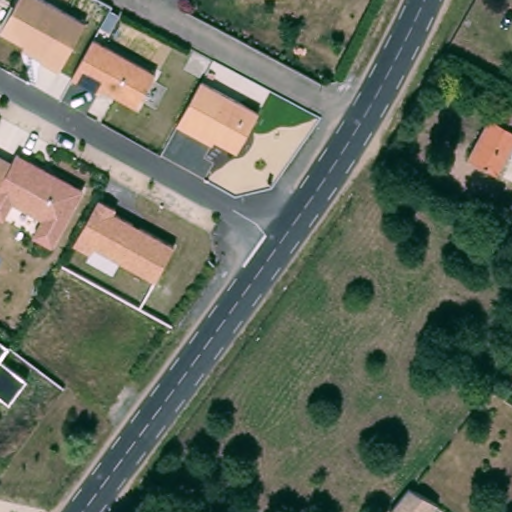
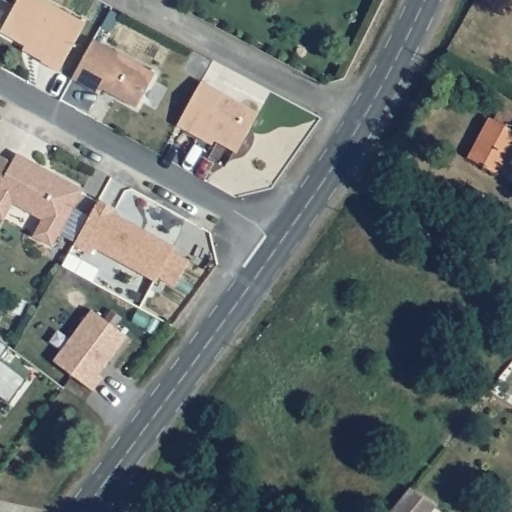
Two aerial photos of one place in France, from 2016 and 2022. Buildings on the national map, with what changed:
unchanged [(18,0),(45,0),(85,23),(59,71),(21,49),(24,44),(0,31),(18,0)]
unchanged [(159,72),(142,106),(107,85),(102,94),(73,78),(94,36),(159,72)]
unchanged [(261,109),(240,149),(216,137),(214,141),(180,122),(202,79),(261,109)]
unchanged [(512,156),(501,176),(467,156),(490,116),(512,128),(512,156)]
unchanged [(85,184),(55,243),(32,233),(42,215),(14,200),(5,217),(0,215),(0,185),(19,148),(85,184)]
unchanged [(0,185),(0,154),(12,161),(0,185)]
unchanged [(100,198),(117,207),(114,214),(173,247),(155,280),(93,247),(89,253),(73,243),(100,198)]
new [(93,305),(129,332),(100,370),(104,373),(94,386),(55,356),(93,305)]
unchanged [(9,347),(0,359),(0,341),(9,347)]
unchanged [(0,394),(0,359),(27,379),(10,401),(0,394)]
unchanged [(437,505),(432,512),(388,512),(407,484),(437,505)]

